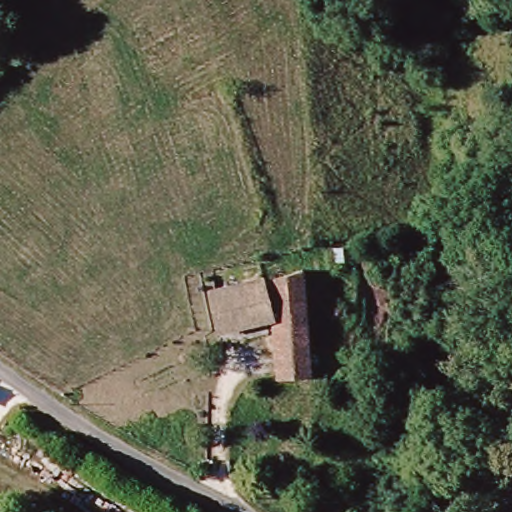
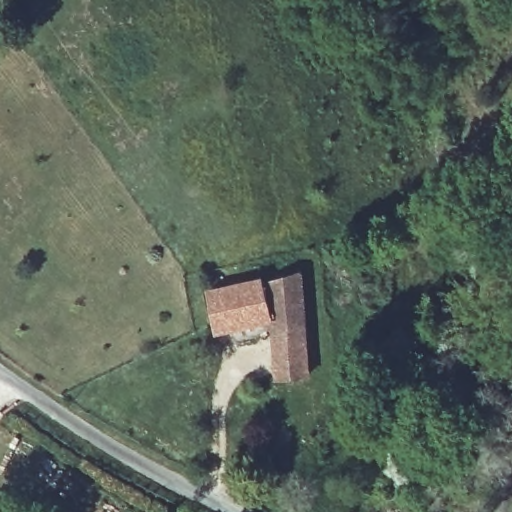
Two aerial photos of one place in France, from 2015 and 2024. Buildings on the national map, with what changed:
unchanged [(211,331),(205,292),(260,280),(261,283),(288,276),(296,272),(307,376),(275,378),(266,321),(211,331)]

